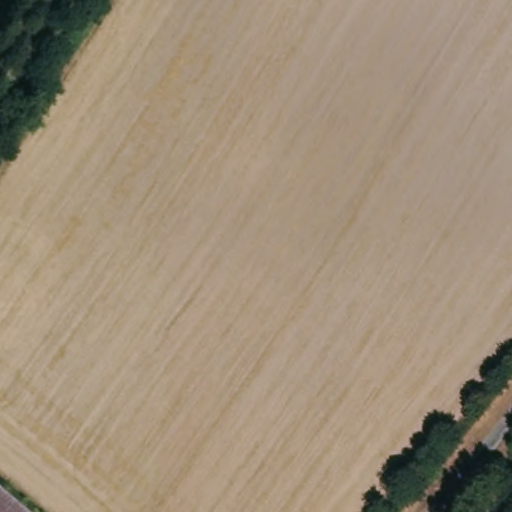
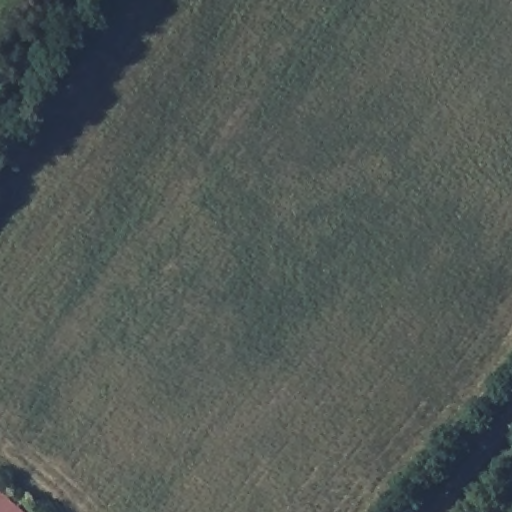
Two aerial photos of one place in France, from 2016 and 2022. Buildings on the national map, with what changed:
unchanged [(31,512),(0,512),(0,488),(1,486),(31,512)]

